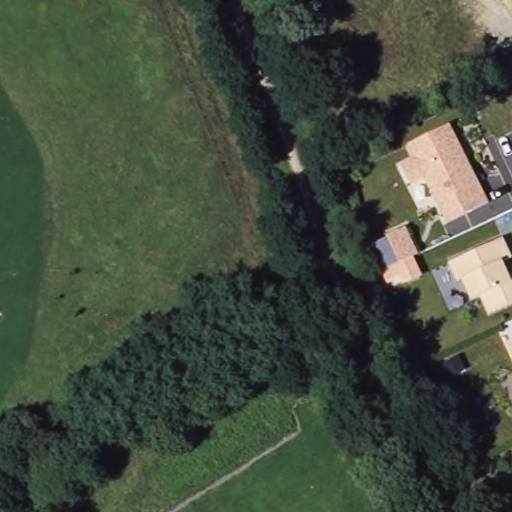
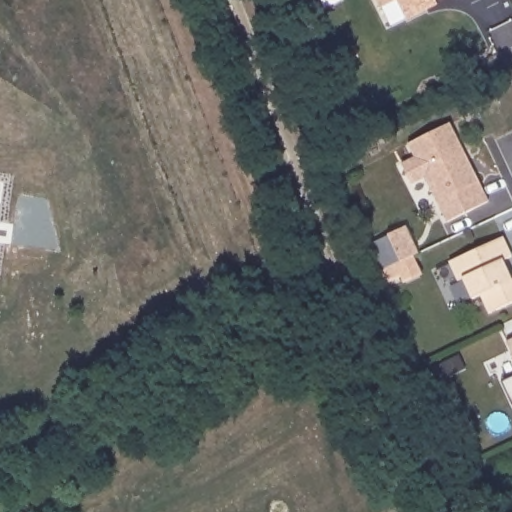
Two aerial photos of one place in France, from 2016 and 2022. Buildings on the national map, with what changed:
new [(428,10),(408,20),(398,0),(382,8),(378,0),(436,0),(438,5),(428,10)]
unchanged [(417,153),(412,142),(458,129),(491,200),(448,223),(426,176),(411,183),(404,160),(417,153)]
unchanged [(408,224),(421,254),(398,266),(387,229),(408,224)]
unchanged [(481,296),(472,300),(463,279),(457,283),(449,263),(503,239),(511,257),(503,261),(511,281),(512,280),(512,304),(488,315),(481,296)]
unchanged [(423,277),(405,284),(401,278),(385,284),(372,248),(390,241),(398,266),(415,257),(423,277)]
unchanged [(512,337),(512,350),(507,339),(512,337)]

